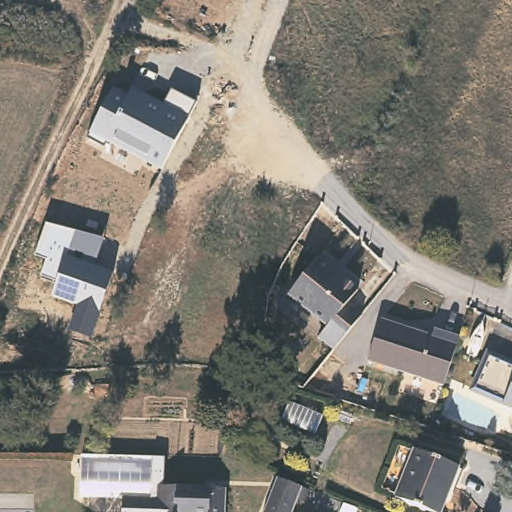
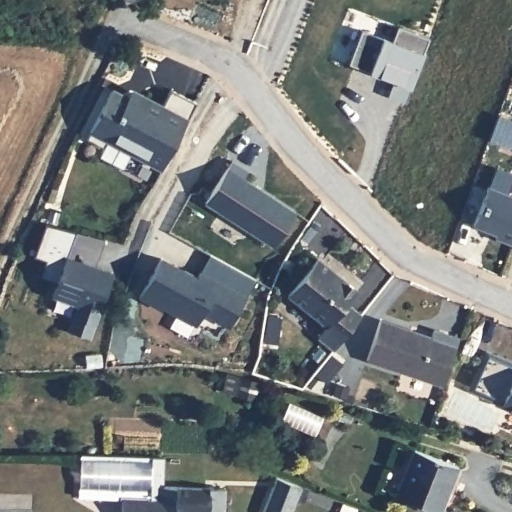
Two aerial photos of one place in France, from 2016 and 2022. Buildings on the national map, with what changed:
new [(422,50),(408,86),(404,101),(388,94),(396,81),(370,72),(371,69),(349,63),(362,29),(382,37),(392,40),(397,25),(428,37),(422,50)]
unchanged [(163,170),(131,153),(124,168),(100,156),(105,146),(86,138),(114,87),(129,94),(132,88),(164,104),(172,90),(196,102),(188,117),(163,170)]
new [(272,245),(205,200),(232,158),(248,168),(242,176),(295,211),(272,245)]
demolished [(372,192),(392,178),(404,194),(387,207),(372,192)]
new [(512,243),(496,238),(498,233),(473,225),(490,184),(512,194),(512,242),(512,243)]
unchanged [(96,266),(114,271),(93,337),(70,331),(78,306),(52,297),(57,284),(41,276),(47,259),(36,255),(47,223),(104,237),(96,266)]
new [(245,296),(228,326),(202,308),(196,325),(141,297),(162,255),(198,277),(211,256),(253,280),(245,296)]
unchanged [(361,293),(351,307),(363,316),(337,353),(322,341),(331,330),(291,299),(319,261),(361,293)]
unchanged [(379,322),(431,338),(433,330),(461,339),(445,387),(367,363),(379,322)]
unchanged [(488,355),(512,365),(512,408),(503,405),(505,401),(475,389),(488,355)]
unchanged [(85,362),(85,376),(66,376),(67,362),(85,362)]
unchanged [(463,463),(444,512),(397,492),(417,445),(463,463)]
unchanged [(148,450),(169,451),(169,483),(155,483),(155,500),(160,501),(160,512),(120,512),(120,493),(150,494),(148,450)]
unchanged [(296,512),(267,512),(280,472),(307,482),(296,512)]
unchanged [(231,484),(231,512),(213,512),(213,509),(199,509),(199,512),(160,512),(160,501),(155,500),(155,483),(169,483),(231,484)]

